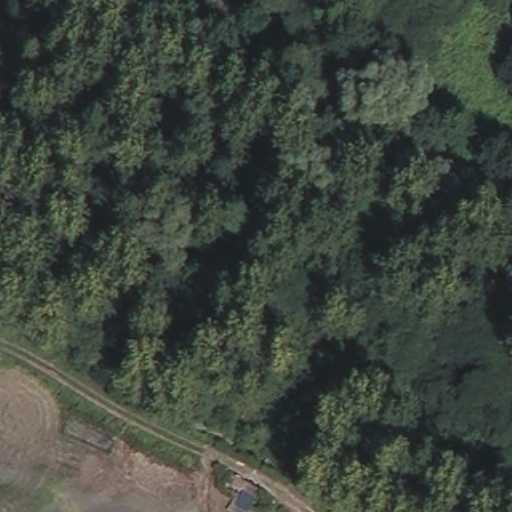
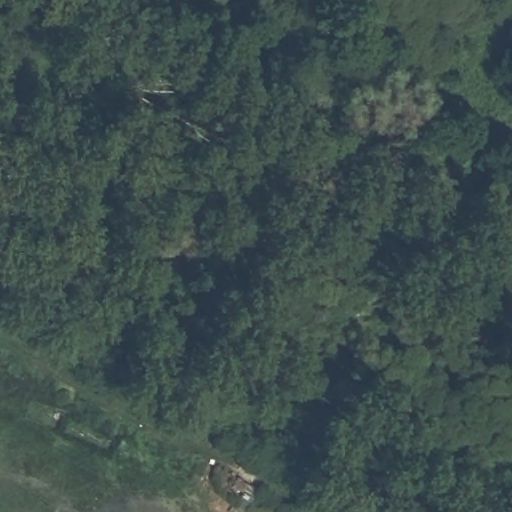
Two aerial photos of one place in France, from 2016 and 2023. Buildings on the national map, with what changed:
unchanged [(264,497),(256,512),(232,512),(243,486),(264,497)]

